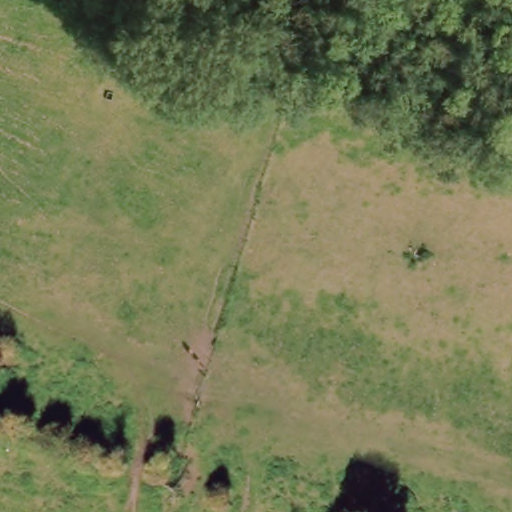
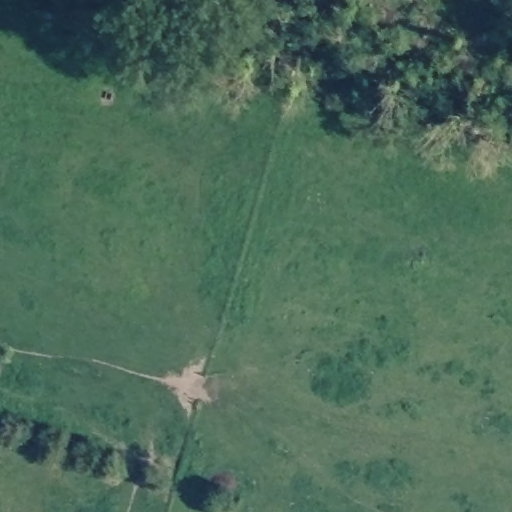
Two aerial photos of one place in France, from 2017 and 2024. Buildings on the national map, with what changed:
[]

